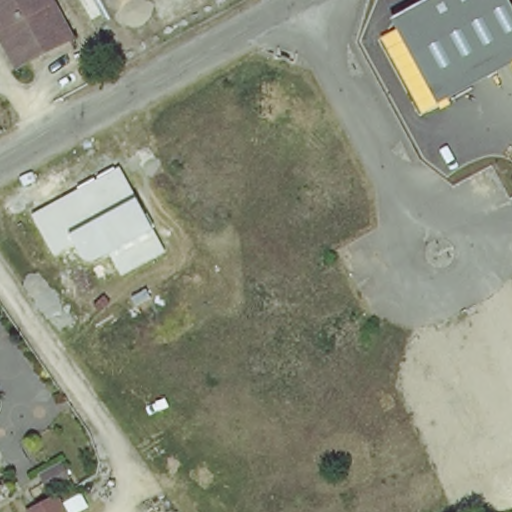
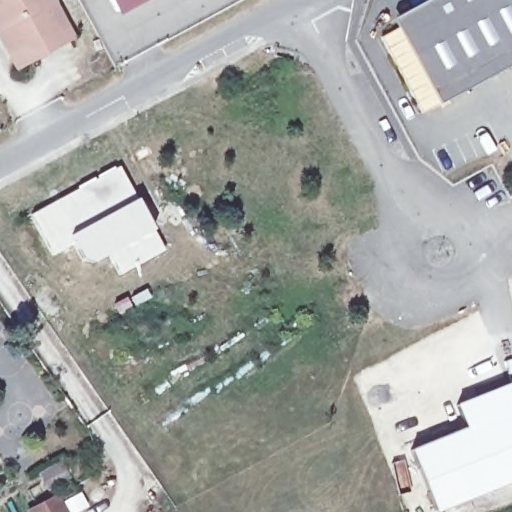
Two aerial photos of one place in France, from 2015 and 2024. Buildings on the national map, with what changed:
unchanged [(16,64),(0,33),(0,0),(50,0),(70,35),(16,64)]
new [(111,0),(136,0),(117,10),(111,0)]
unchanged [(508,0),(512,8),(512,67),(425,114),(384,40),(400,33),(392,18),(425,0),(508,0)]
unchanged [(120,167),(166,252),(120,276),(109,256),(95,264),(80,261),(72,245),(52,256),(33,214),(120,167)]
new [(412,451),(465,428),(455,406),(509,385),(512,392),(512,483),(439,512),(436,512),(412,451)]

